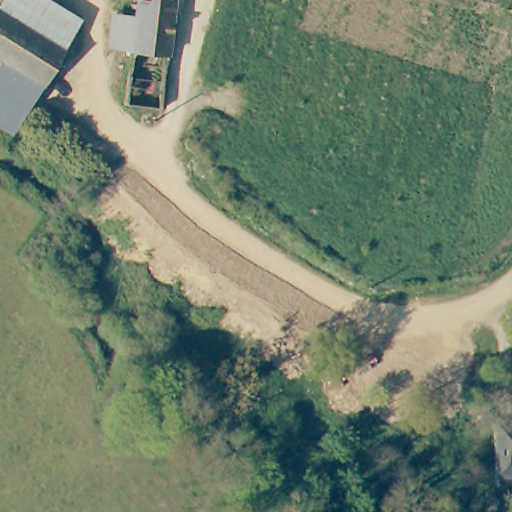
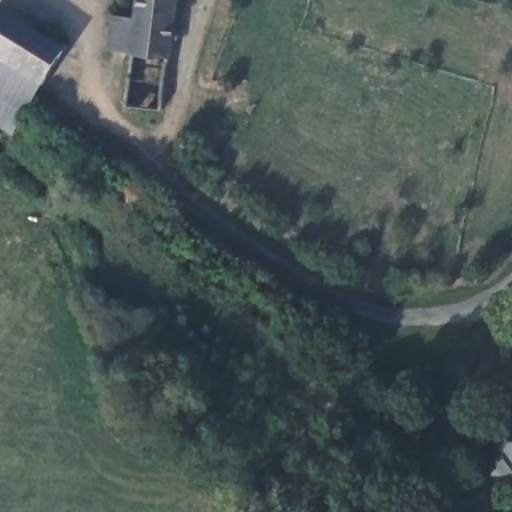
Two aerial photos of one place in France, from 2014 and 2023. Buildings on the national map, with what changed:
unchanged [(127,0),(138,1),(134,45),(112,43),(115,0),(127,0)]
unchanged [(139,0),(177,0),(165,105),(128,101),(134,45),(138,1),(139,0)]
unchanged [(44,87),(2,61),(0,60),(0,11),(60,49),(66,53),(44,87)]
unchanged [(44,87),(13,135),(0,126),(0,66),(2,61),(44,87)]
unchanged [(512,422),(512,475),(495,475),(498,422),(512,422)]

